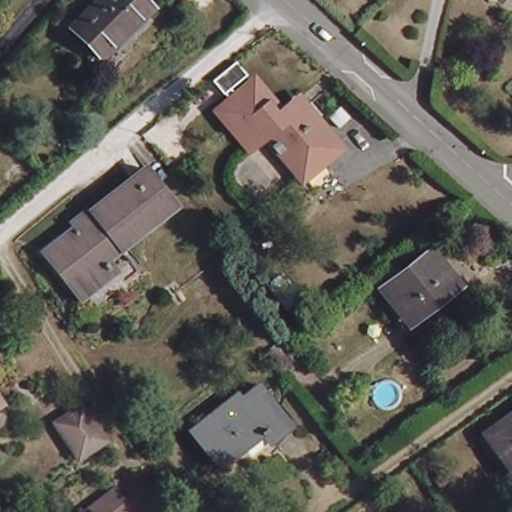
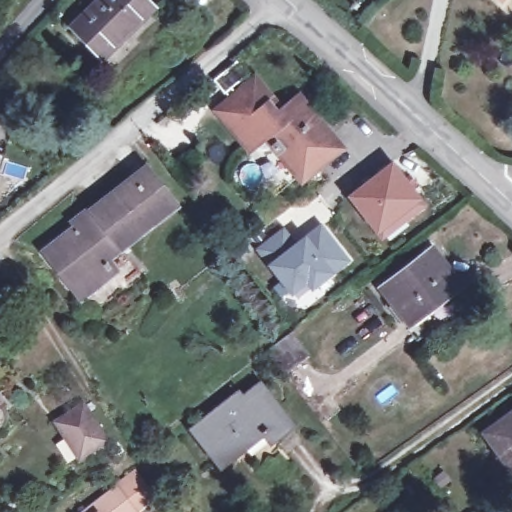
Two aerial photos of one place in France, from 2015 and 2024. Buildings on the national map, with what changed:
unchanged [(94,0),(139,0),(148,9),(97,60),(65,29),(94,0)]
unchanged [(499,0),(502,0),(501,2),(499,0)]
unchanged [(211,118),(243,90),(269,121),(287,106),(324,150),(289,179),(256,139),(239,152),(211,118)]
unchanged [(0,167),(0,154),(3,155),(0,167)]
new [(393,162),(422,200),(427,206),(384,241),(376,233),(348,197),(393,162)]
unchanged [(34,254),(45,245),(82,215),(79,212),(136,168),(165,206),(148,220),(144,215),(106,245),(118,260),(81,290),(69,299),(34,254)]
new [(284,227),(296,242),(306,235),(319,224),(351,261),(334,274),(313,292),(309,287),(296,299),(294,296),(269,265),(256,250),(284,227)]
unchanged [(383,290),(432,251),(459,286),(409,323),(383,290)]
demolished [(286,308),(267,285),(281,274),(299,297),(286,308)]
unchanged [(219,472),(191,436),(236,400),(241,406),(259,391),(291,431),(273,447),(264,437),(219,472)]
unchanged [(58,420),(81,405),(104,441),(79,457),(56,422),(58,420)]
unchanged [(484,434),(512,413),(512,472),(511,472),(484,434)]
unchanged [(80,511),(114,485),(113,485),(131,470),(149,492),(131,507),(135,512),(81,512),(80,511)]

